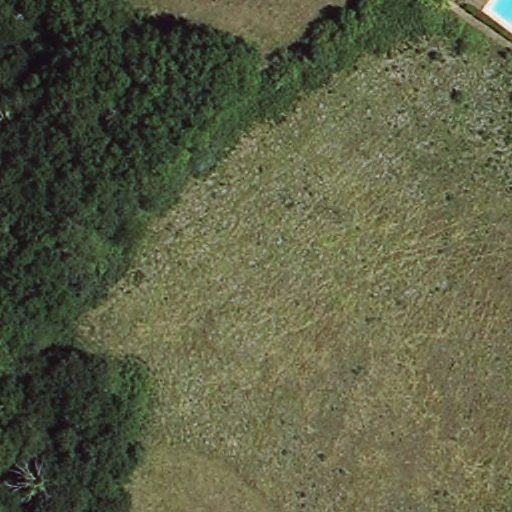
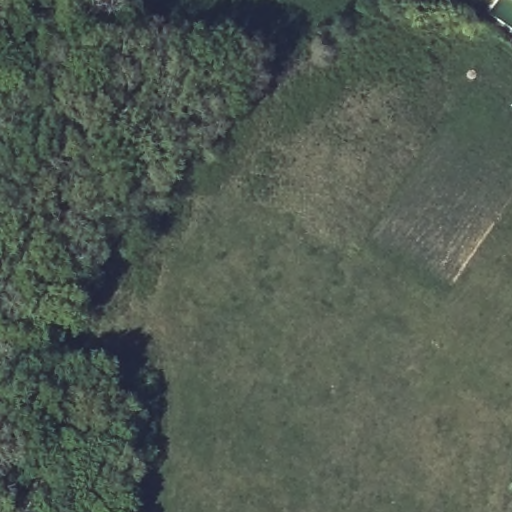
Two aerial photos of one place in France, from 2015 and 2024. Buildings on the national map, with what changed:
unchanged [(486,13),(469,0),(494,0),(486,13)]

